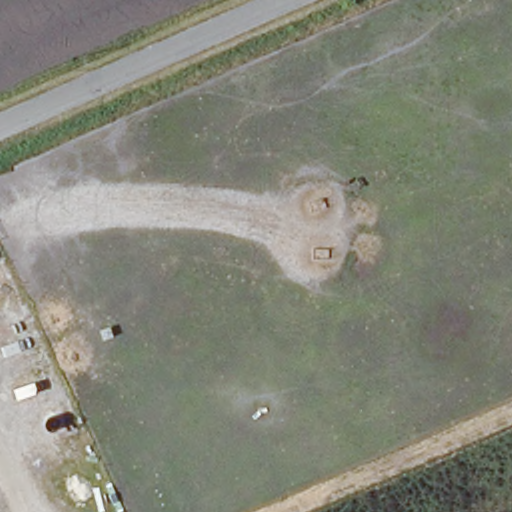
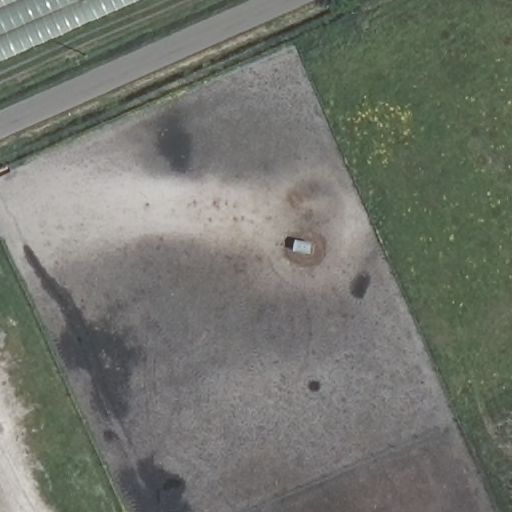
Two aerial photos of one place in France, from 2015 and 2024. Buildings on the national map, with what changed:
new [(144,0),(0,64),(0,0),(144,0)]

